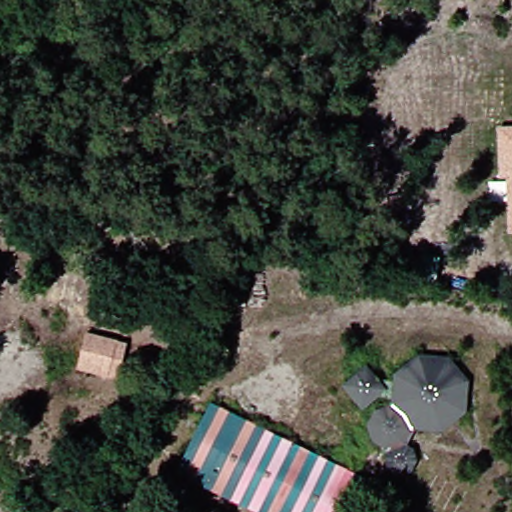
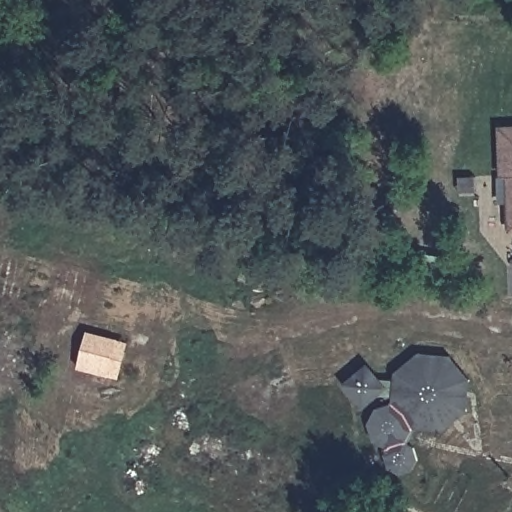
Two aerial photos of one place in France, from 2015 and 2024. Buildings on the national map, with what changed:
unchanged [(512,233),(511,234),(508,179),(499,179),(497,125),(512,125),(512,233)]
unchanged [(123,343),(114,382),(73,372),(80,333),(123,343)]
unchanged [(430,352),(447,358),(464,375),(466,396),(459,418),(445,427),(430,431),(421,430),(418,451),(426,454),(422,468),(410,476),(399,477),(386,467),(384,455),(388,441),(378,434),(381,405),(390,407),(389,380),(407,357),(430,352)]
unchanged [(342,388),(368,363),(380,377),(387,378),(386,401),(370,407),(366,413),(342,388)]
demolished [(201,401),(362,479),(348,512),(254,512),(169,470),(201,401)]

